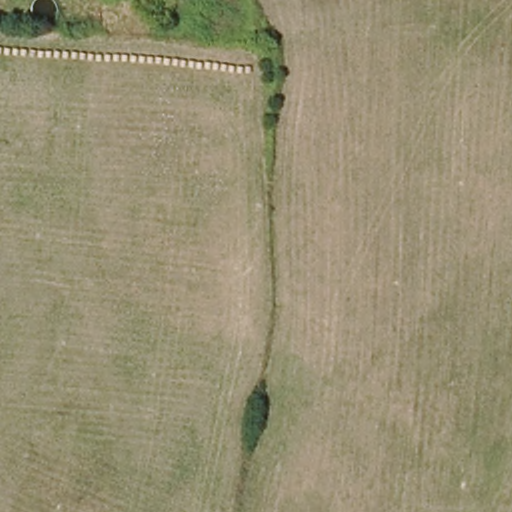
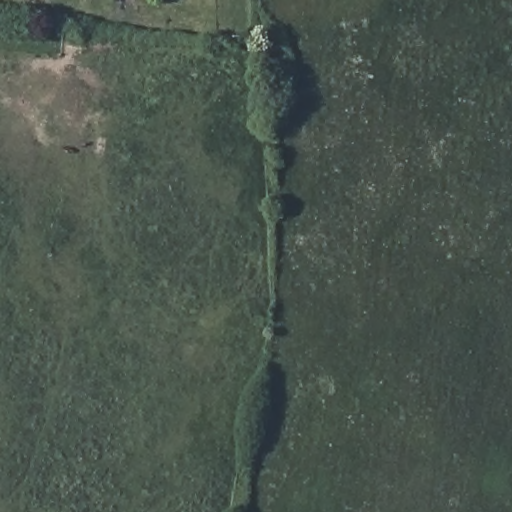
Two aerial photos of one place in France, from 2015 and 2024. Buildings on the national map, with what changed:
[]

